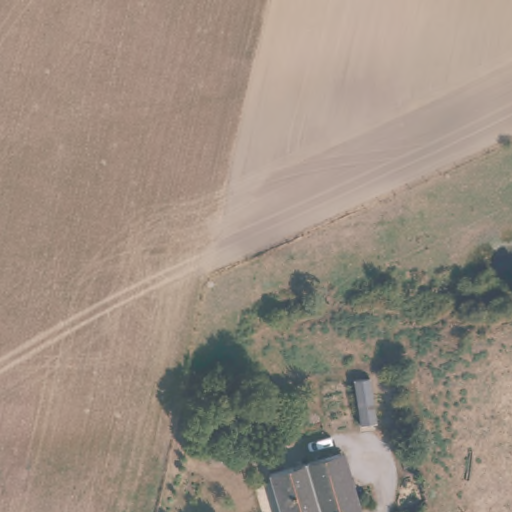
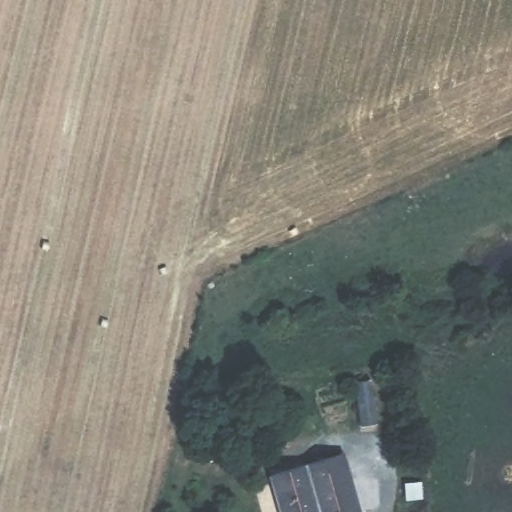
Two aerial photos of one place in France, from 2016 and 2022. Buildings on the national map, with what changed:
unchanged [(380,422),(358,424),(352,380),(371,377),(380,422)]
unchanged [(339,453),(347,478),(350,477),(360,512),(282,512),(271,474),(339,453)]

